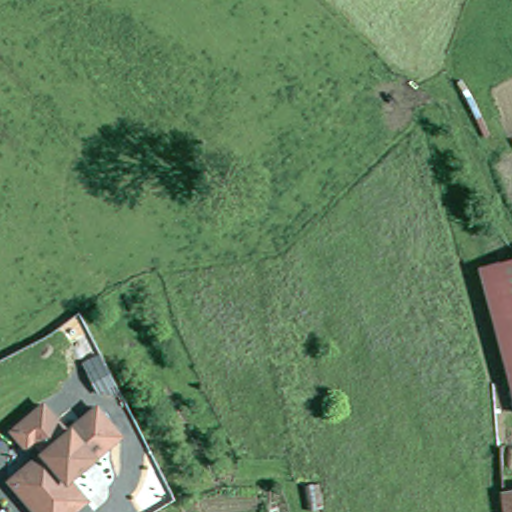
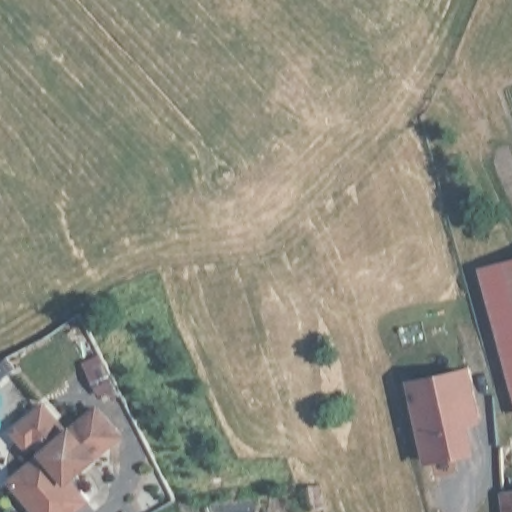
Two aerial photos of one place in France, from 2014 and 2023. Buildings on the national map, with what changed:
unchanged [(512,259),(512,356),(487,266),(512,259)]
new [(87,371),(82,361),(100,351),(115,379),(109,381),(95,388),(87,371)]
new [(472,424),(477,453),(424,464),(407,378),(471,365),(482,421),(472,424)]
unchanged [(43,446),(36,453),(18,433),(47,407),(72,433),(101,407),(125,434),(76,480),(94,500),(92,501),(82,511),(80,512),(73,512),(46,480),(62,466),(50,454),(43,446)]
unchanged [(62,466),(46,480),(73,512),(45,512),(18,483),(50,454),(62,466)]
unchanged [(512,496),(512,512),(502,512),(500,499),(512,496)]

